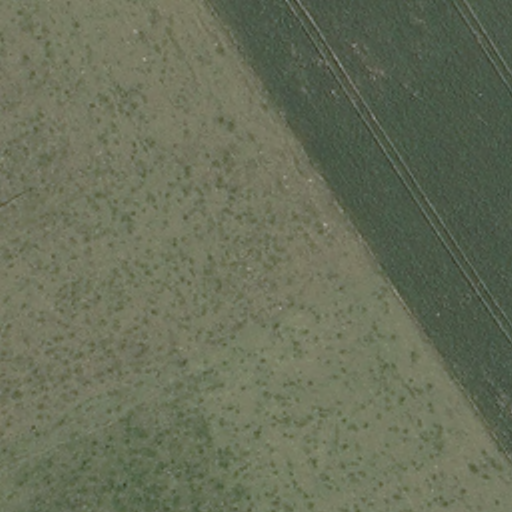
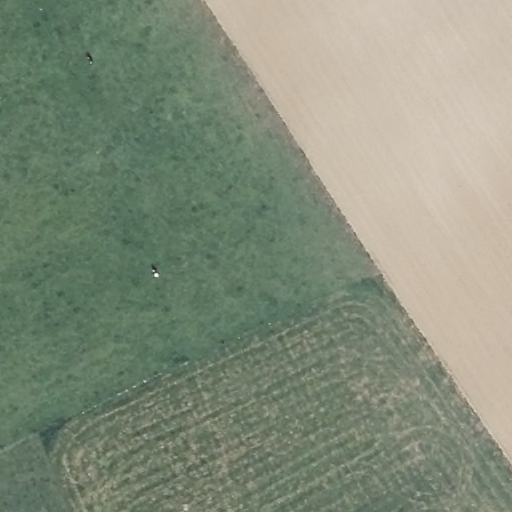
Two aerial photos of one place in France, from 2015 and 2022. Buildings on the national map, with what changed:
[]

